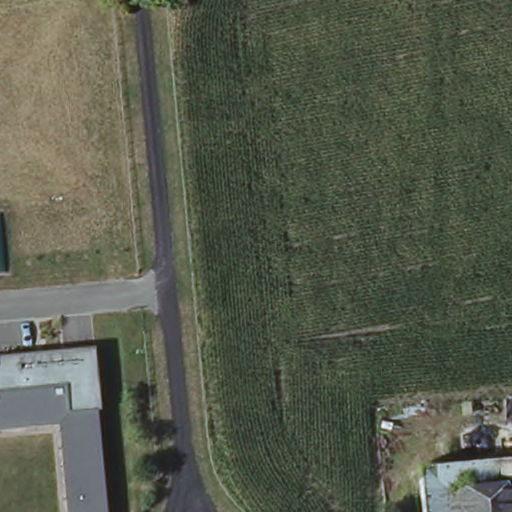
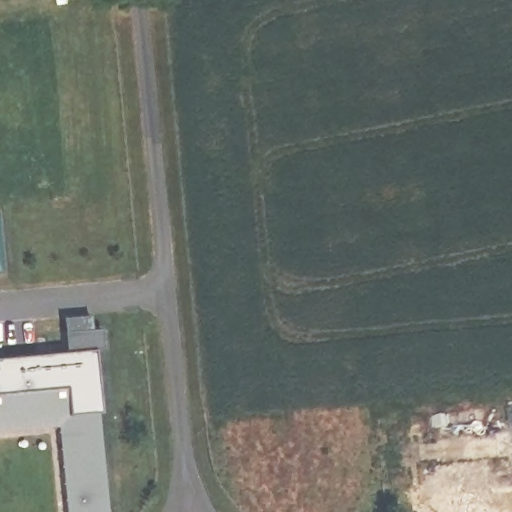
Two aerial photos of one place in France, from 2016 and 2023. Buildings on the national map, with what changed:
unchanged [(94,348),(101,411),(98,412),(107,512),(67,512),(59,426),(0,432),(0,358),(94,348)]
demolished [(512,512),(424,512),(420,468),(512,460),(512,512)]

